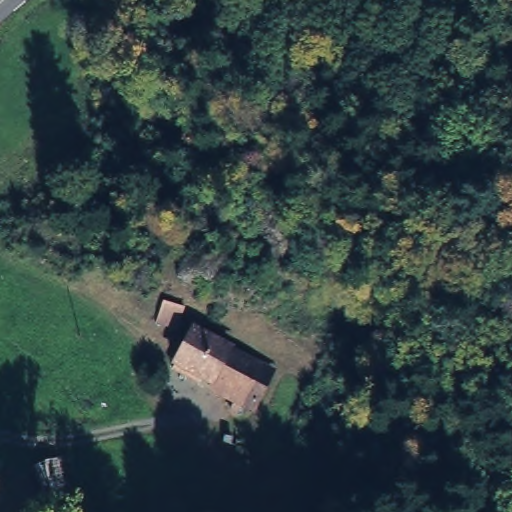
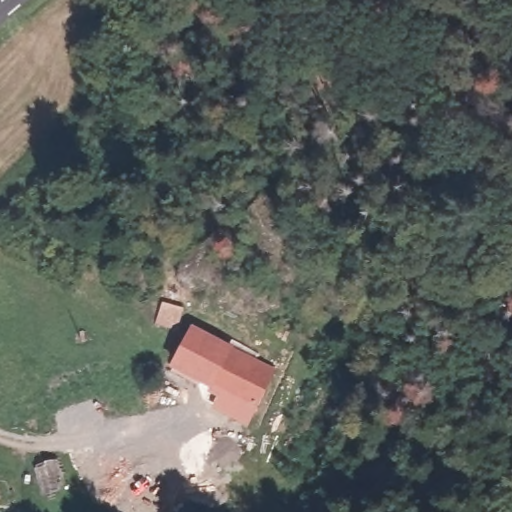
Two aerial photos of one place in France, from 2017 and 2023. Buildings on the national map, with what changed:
unchanged [(261,359),(259,366),(269,375),(255,402),(176,359),(196,321),(261,359)]
unchanged [(58,465),(68,490),(43,500),(35,473),(58,465)]

